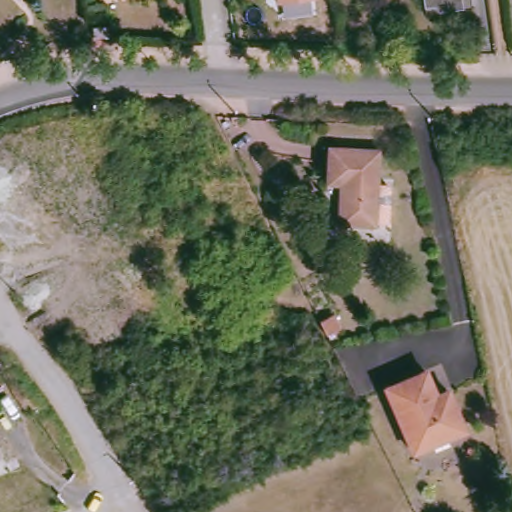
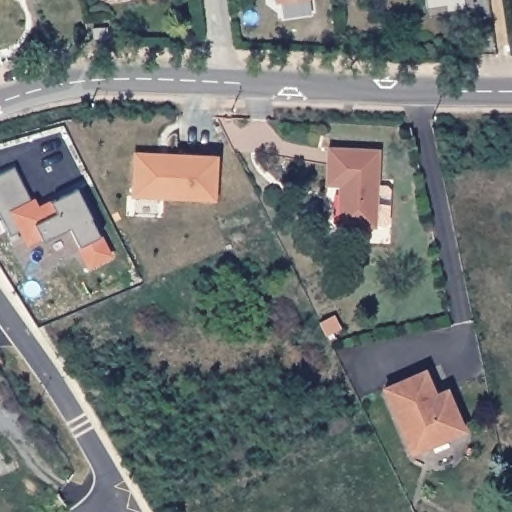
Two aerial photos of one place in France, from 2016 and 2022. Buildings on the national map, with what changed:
unchanged [(277,0),(285,0),(277,1),(277,0)]
unchanged [(443,9),(442,2),(425,5),(424,0),(464,0),(465,6),(443,9)]
unchanged [(108,32),(95,36),(92,26),(106,24),(108,32)]
unchanged [(395,196),(394,220),(390,224),(380,224),(380,226),(339,223),(340,187),(346,188),(346,182),(332,181),(334,144),(382,149),(380,191),(390,192),(395,196)]
new [(214,201),(130,196),(132,152),(217,155),(214,201)]
new [(12,166),(30,200),(34,197),(38,206),(51,201),(76,189),(100,236),(112,257),(87,266),(81,247),(71,228),(41,240),(27,245),(19,230),(10,234),(0,214),(0,173),(12,166)]
unchanged [(333,316),(340,330),(327,336),(320,323),(333,316)]
unchanged [(451,438),(409,454),(380,390),(422,372),(432,396),(444,391),(455,417),(463,433),(451,438)]

